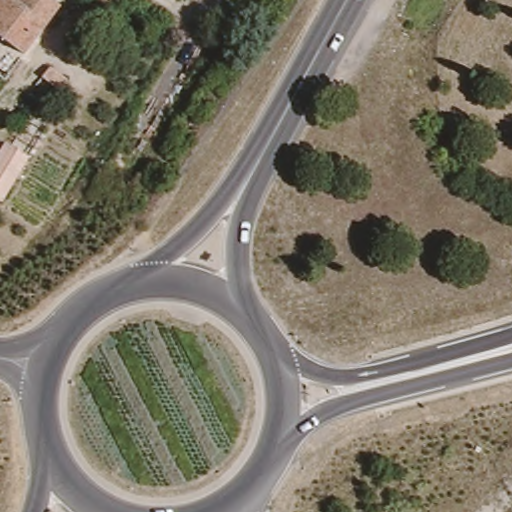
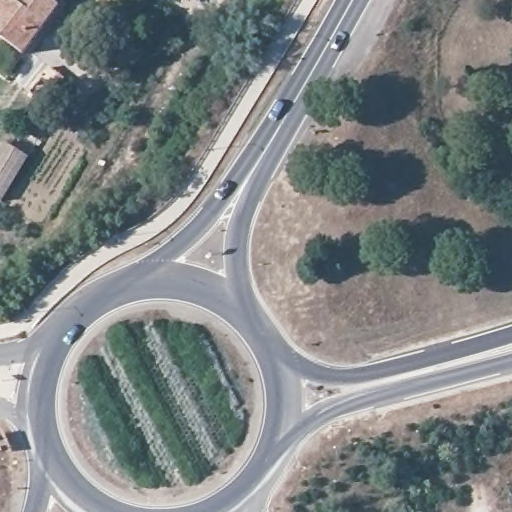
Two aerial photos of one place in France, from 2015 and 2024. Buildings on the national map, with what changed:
unchanged [(18,0),(25,5),(29,0),(37,0),(50,9),(43,18),(40,23),(44,27),(8,76),(0,71),(0,9),(8,14),(18,0)]
unchanged [(0,185),(0,147),(17,157),(0,185)]

